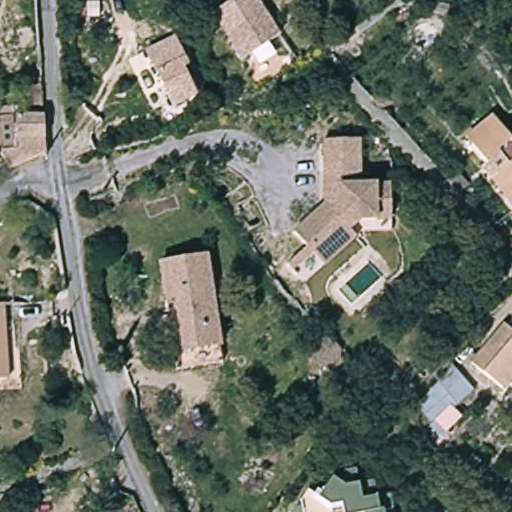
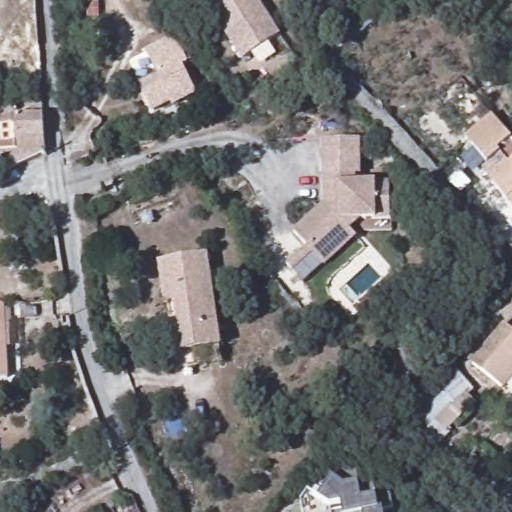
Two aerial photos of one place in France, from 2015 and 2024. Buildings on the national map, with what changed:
unchanged [(258,0),(280,34),(243,58),(213,12),(231,0),(258,0)]
unchanged [(172,35),(185,62),(180,64),(194,94),(171,105),(144,49),(172,35)]
unchanged [(11,109),(10,117),(37,117),(37,119),(37,121),(40,157),(5,172),(0,161),(0,110),(11,109)]
unchanged [(493,162),(477,144),(468,134),(480,123),(494,111),(512,132),(512,162),(503,154),(493,162)]
unchanged [(324,203),(322,139),(361,138),(361,174),(357,174),(358,183),(390,182),(391,220),(359,221),(350,230),(357,236),(325,266),(293,230),(324,203)]
unchanged [(512,167),(512,196),(499,180),(512,167)]
unchanged [(209,258),(222,348),(184,354),(176,300),(164,300),(159,265),(209,258)]
unchanged [(5,306),(8,378),(0,379),(0,307),(5,306)]
unchanged [(469,362),(502,322),(512,331),(512,377),(502,389),(469,362)]
unchanged [(474,390),(455,409),(432,382),(453,364),(474,390)]
unchanged [(306,510),(304,500),(311,489),(321,496),(338,472),(359,468),(362,483),(377,480),(382,509),(385,509),(385,512),(306,512),(306,510)]

